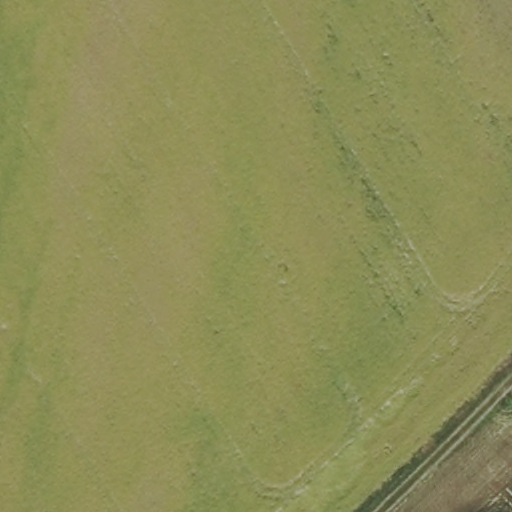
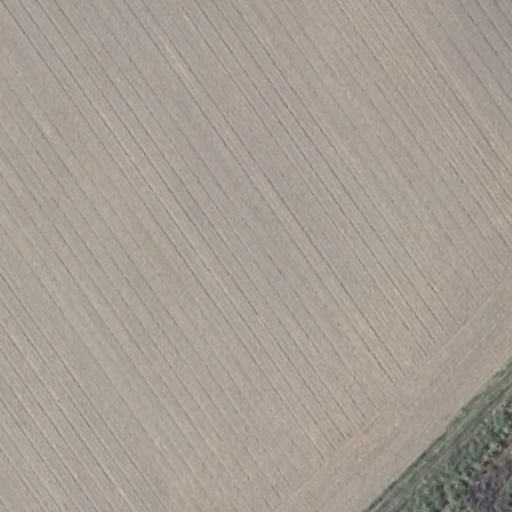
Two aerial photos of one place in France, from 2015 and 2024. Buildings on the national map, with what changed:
[]

